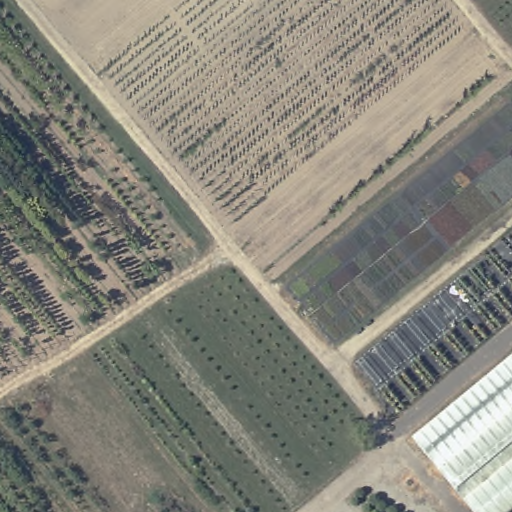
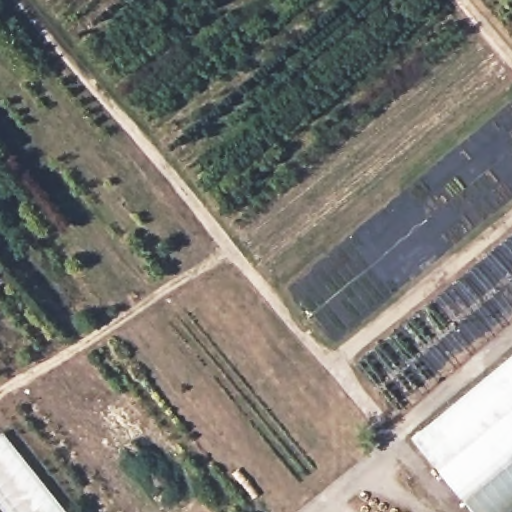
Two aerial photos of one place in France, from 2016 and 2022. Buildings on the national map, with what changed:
unchanged [(466,512),(405,434),(512,347),(512,500),(498,512),(466,512)]
new [(64,512),(3,512),(0,508),(0,434),(1,433),(64,512)]

